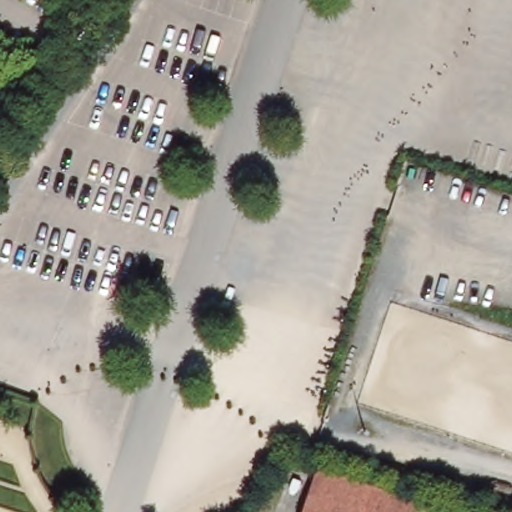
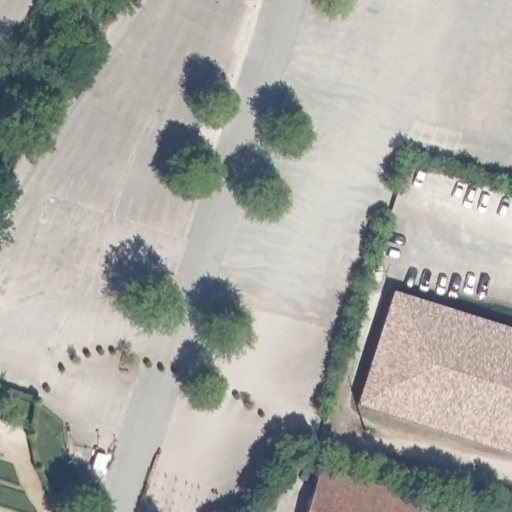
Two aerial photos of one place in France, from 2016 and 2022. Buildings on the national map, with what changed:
new [(391,290),(512,328),(512,454),(355,404),(391,290)]
demolished [(476,342),(505,354),(500,364),(512,369),(512,477),(411,449),(450,313),(480,325),(476,342)]
unchanged [(419,497),(415,512),(301,512),(316,465),(419,497)]

